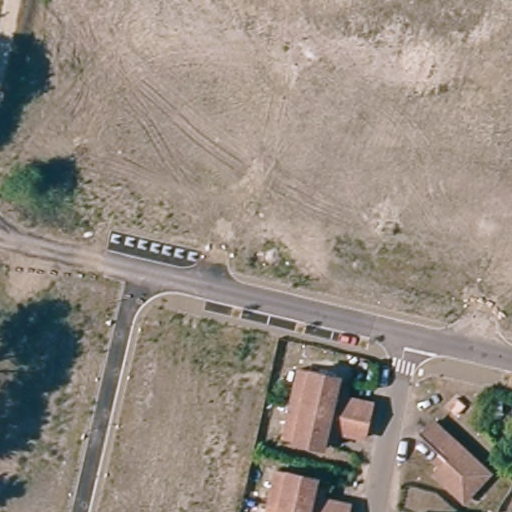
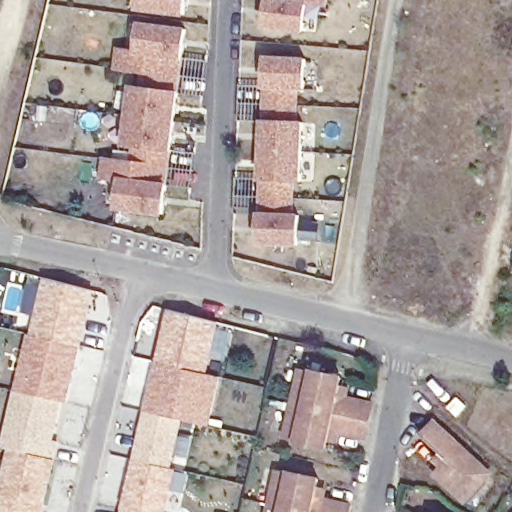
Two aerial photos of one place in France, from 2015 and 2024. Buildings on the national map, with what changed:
new [(187,15),(137,11),(138,0),(189,0),(187,15)]
new [(328,8),(308,6),(304,33),(264,27),(268,0),(330,0),(328,8)]
new [(187,28),(165,216),(116,211),(119,180),(102,180),(103,158),(131,160),(134,148),(123,147),(130,84),(140,86),(141,74),(113,71),(116,48),(136,52),(139,22),(187,28)]
new [(308,57),(306,89),(299,89),(298,120),(304,121),(302,181),(296,182),(296,213),(301,213),(300,245),(258,245),(265,56),(308,57)]
new [(67,403),(62,402),(54,439),(60,441),(57,460),(55,460),(43,512),(0,512),(0,481),(8,447),(0,446),(27,334),(29,334),(43,277),(95,290),(81,348),(67,403)]
new [(218,323),(206,374),(221,377),(209,427),(183,420),(171,469),(176,469),(167,512),(119,512),(167,311),(218,323)]
unchanged [(378,405),(371,436),(336,429),(332,446),(291,437),(299,403),(306,372),(307,367),(348,377),(348,380),(344,396),(378,405)]
unchanged [(461,412),(454,419),(444,410),(447,406),(453,402),(461,409),(461,412)]
unchanged [(485,478),(460,503),(433,476),(446,464),(417,438),(429,426),(485,478)]
unchanged [(321,491),(356,499),(353,512),(273,512),(276,500),(283,465),(325,474),(321,491)]
unchanged [(398,512),(398,509),(412,512),(398,512)]

